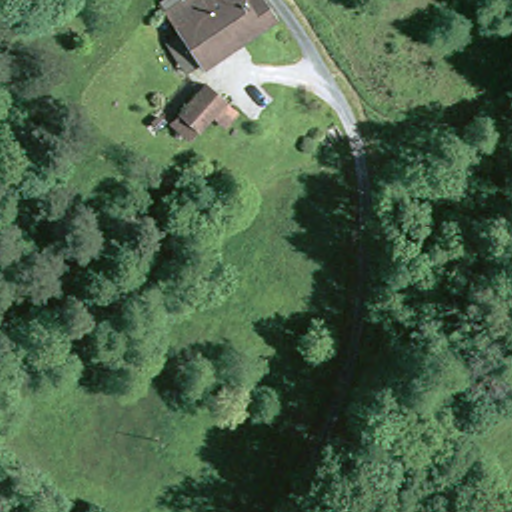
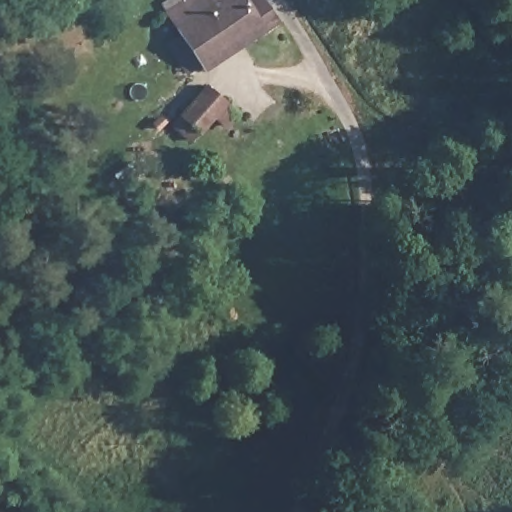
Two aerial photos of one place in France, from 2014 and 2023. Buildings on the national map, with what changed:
unchanged [(157,15),(167,10),(163,2),(166,0),(266,0),(277,23),(202,69),(192,75),(157,15)]
unchanged [(210,88),(228,105),(201,136),(183,120),(208,89),(210,88)]

